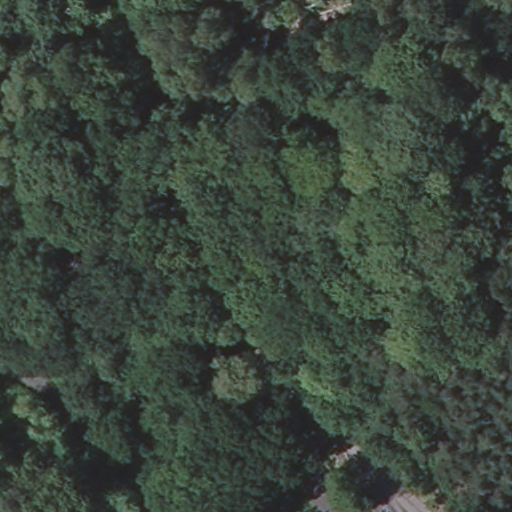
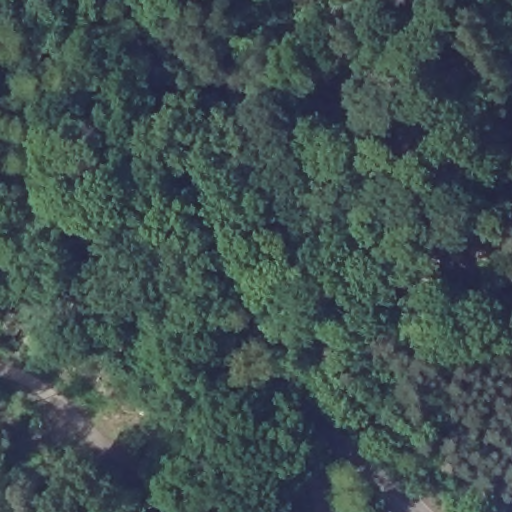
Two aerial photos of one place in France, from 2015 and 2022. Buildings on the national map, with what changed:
unchanged [(40,84),(2,81),(3,73),(0,73),(0,52),(5,52),(7,40),(45,43),(40,84)]

